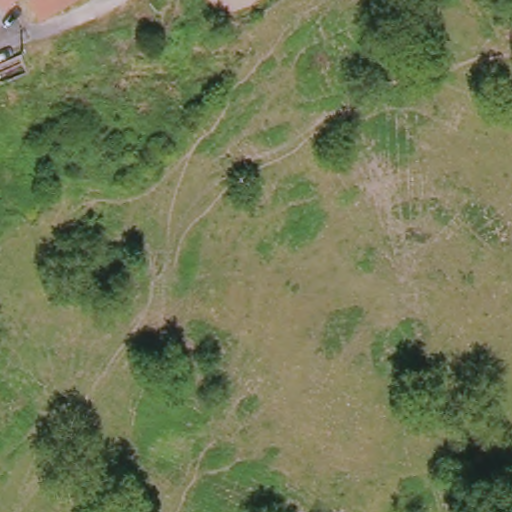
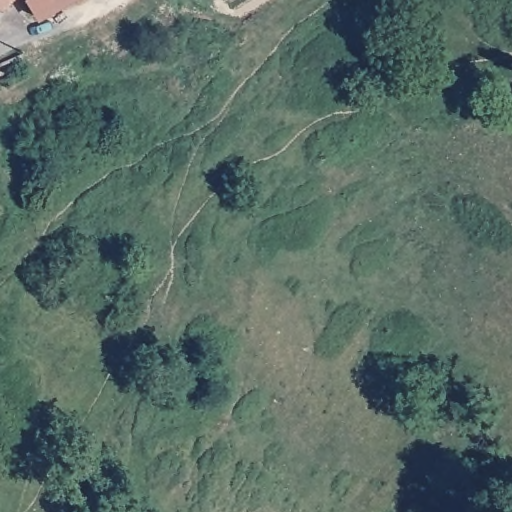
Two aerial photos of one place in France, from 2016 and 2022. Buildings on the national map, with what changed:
unchanged [(0,27),(0,0),(24,0),(0,27)]
unchanged [(37,0),(75,0),(49,19),(37,0)]

